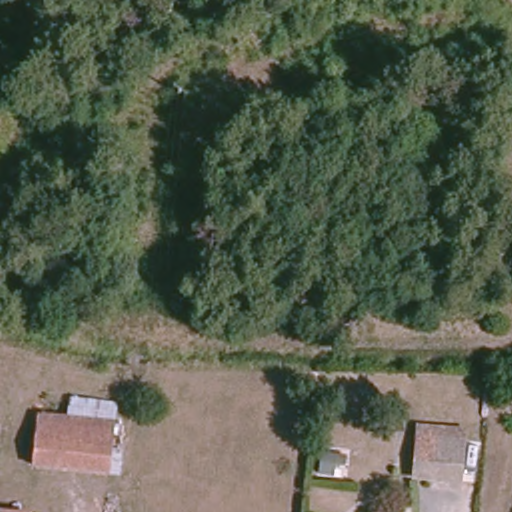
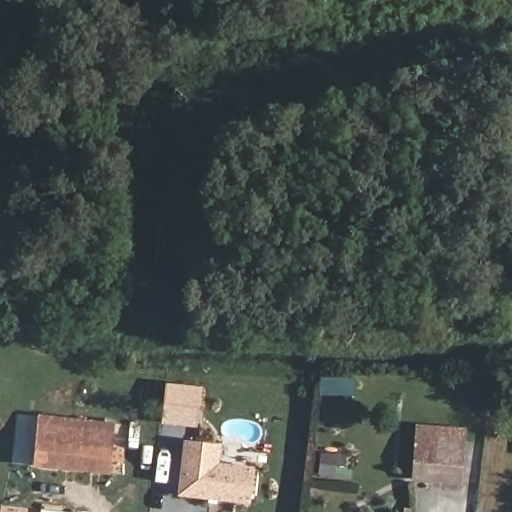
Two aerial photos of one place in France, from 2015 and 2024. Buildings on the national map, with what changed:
new [(201,385),(196,427),(160,423),(164,382),(201,385)]
unchanged [(34,467),(40,413),(126,423),(122,475),(34,467)]
unchanged [(416,482),(419,448),(420,438),(466,442),(465,451),(463,486),(416,482)]
new [(187,440),(223,445),(220,464),(257,467),(253,502),(182,495),(187,440)]
unchanged [(18,512),(0,512),(0,511),(18,512)]

